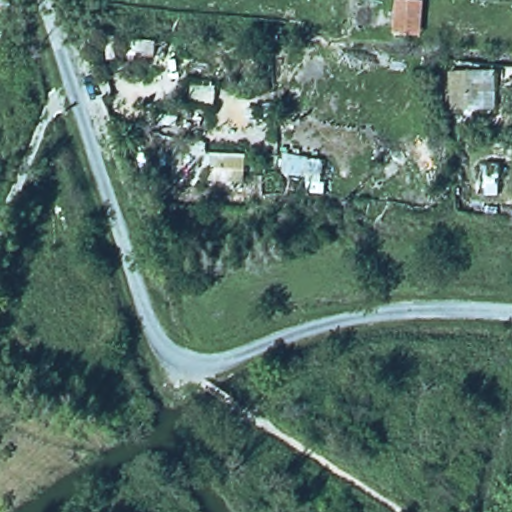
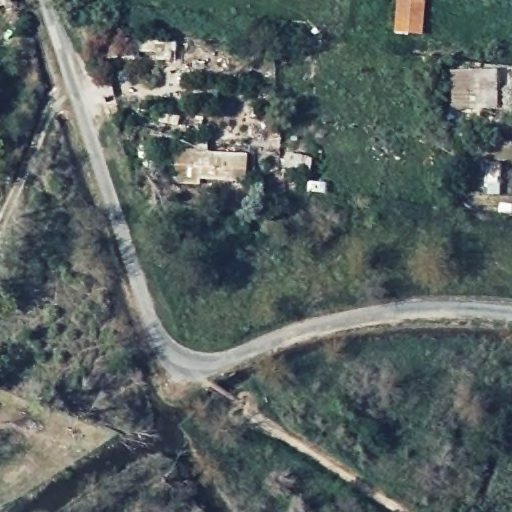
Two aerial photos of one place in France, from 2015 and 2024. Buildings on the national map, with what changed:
unchanged [(389,32),(392,0),(429,0),(427,37),(389,32)]
unchanged [(188,29),(186,57),(148,52),(151,25),(188,29)]
unchanged [(498,64),(500,110),(450,112),(450,66),(498,64)]
unchanged [(207,136),(207,149),(248,153),(249,180),(213,179),(209,167),(181,166),(182,135),(207,136)]

